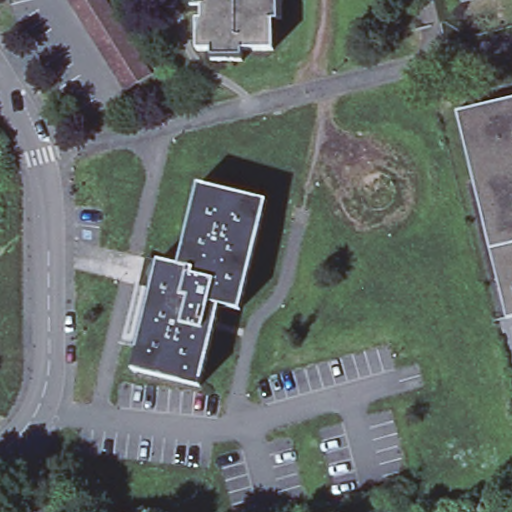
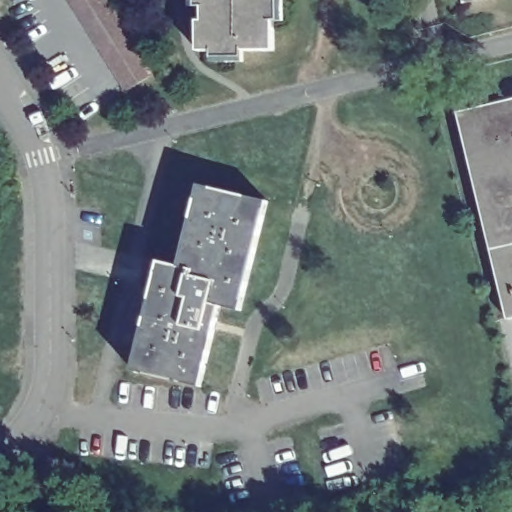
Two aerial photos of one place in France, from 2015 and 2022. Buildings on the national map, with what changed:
unchanged [(128,91),(70,0),(107,0),(154,74),(128,91)]
unchanged [(199,51),(200,20),(204,20),(204,7),(193,7),(193,0),(284,0),(284,4),(285,20),(276,20),(276,49),(246,49),(246,61),(233,61),(214,62),(214,51),(199,51)]
unchanged [(464,0),(480,0),(464,4),(464,0)]
unchanged [(512,102),(512,319),(510,319),(459,115),(512,102)]
unchanged [(243,307),(222,301),(202,382),(135,366),(161,258),(181,262),(203,182),(269,198),(243,307)]

